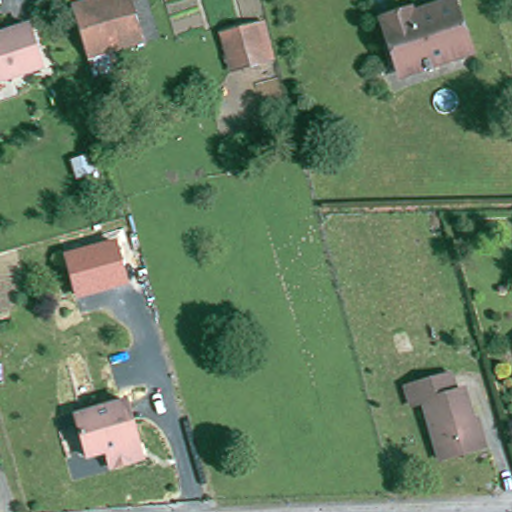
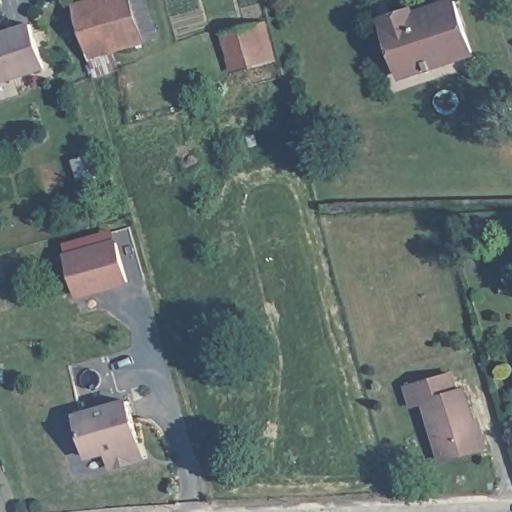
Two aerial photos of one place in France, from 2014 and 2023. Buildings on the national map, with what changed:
unchanged [(78,7),(101,0),(135,0),(147,42),(93,57),(78,7)]
unchanged [(472,52),(427,68),(425,62),(402,71),(393,46),(398,44),(390,17),(412,10),(415,16),(455,2),(472,52)]
unchanged [(235,72),(223,32),(262,22),(272,62),(235,72)]
unchanged [(0,82),(0,39),(2,39),(2,34),(30,25),(43,68),(0,82)]
unchanged [(117,240),(128,285),(75,299),(65,256),(117,240)]
unchanged [(417,404),(412,385),(452,373),(457,392),(464,389),(476,432),(480,430),(485,447),(441,460),(424,402),(417,404)]
unchanged [(132,402),(145,442),(137,445),(140,461),(116,467),(112,452),(93,457),(81,416),(132,402)]

